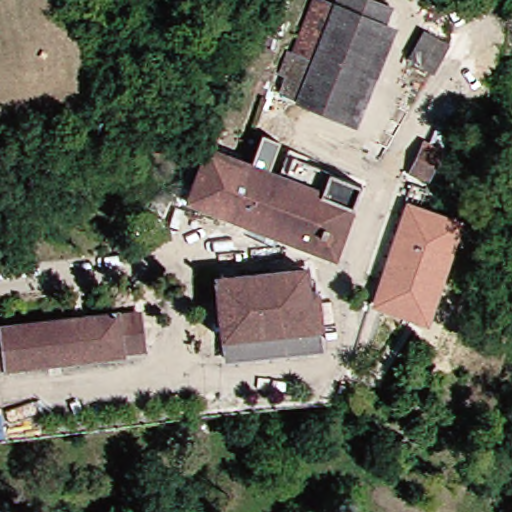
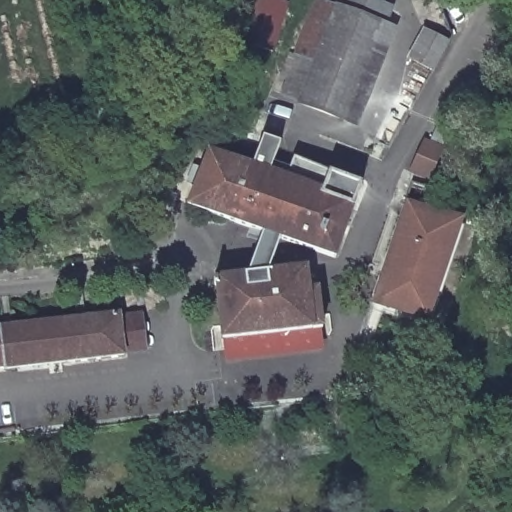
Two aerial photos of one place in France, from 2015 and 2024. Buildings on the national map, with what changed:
unchanged [(283,2),(275,41),(249,33),(257,0),(275,0),(283,2)]
unchanged [(285,91),(291,74),(285,70),(292,52),(316,59),(340,0),(380,0),(392,5),(347,116),(285,91)]
unchanged [(448,39),(433,67),(409,55),(424,27),(448,39)]
unchanged [(424,157),(432,136),(439,139),(447,124),(460,134),(446,166),(424,157)]
unchanged [(338,260),(195,207),(213,152),(295,180),(301,165),(364,188),(338,260)]
unchanged [(386,295),(415,208),(453,221),(426,307),(386,295)]
unchanged [(453,221),(465,225),(434,324),(382,307),(386,295),(426,307),(453,221)]
unchanged [(306,292),(316,291),(321,328),(311,328),(313,351),(226,363),(221,325),(214,326),(212,315),(220,314),(216,280),(303,268),(306,292)]
unchanged [(9,370),(7,364),(0,365),(0,327),(119,314),(122,317),(143,315),(145,342),(125,343),(125,355),(9,370)]

